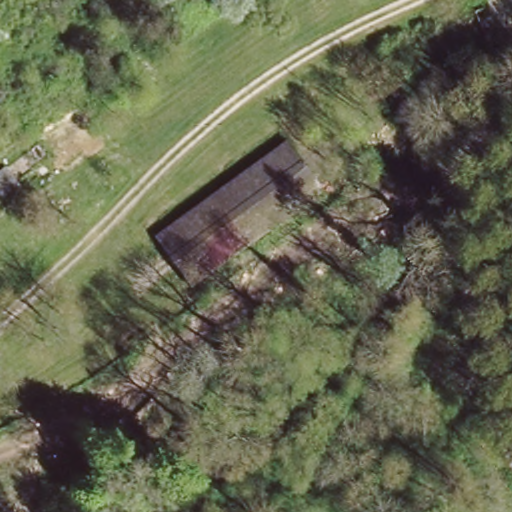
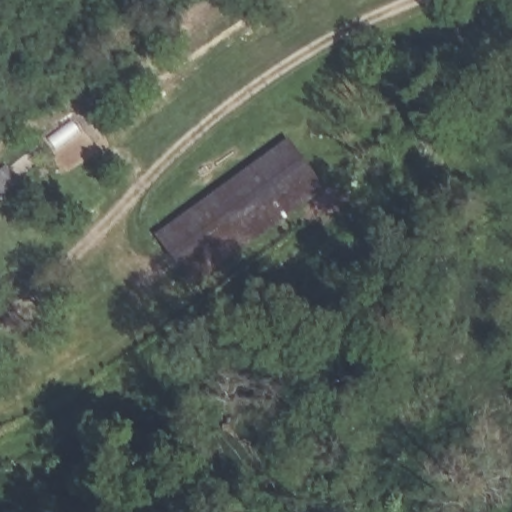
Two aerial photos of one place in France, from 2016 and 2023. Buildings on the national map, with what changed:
unchanged [(366,79),(503,0),(512,0),(512,71),(399,136),(366,79)]
unchanged [(317,189),(185,282),(150,233),(282,140),(317,189)]

